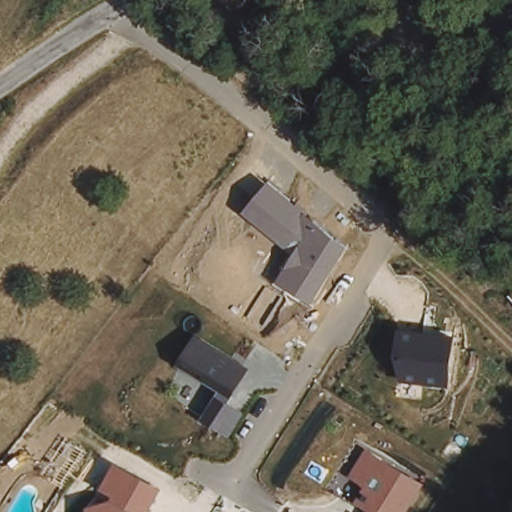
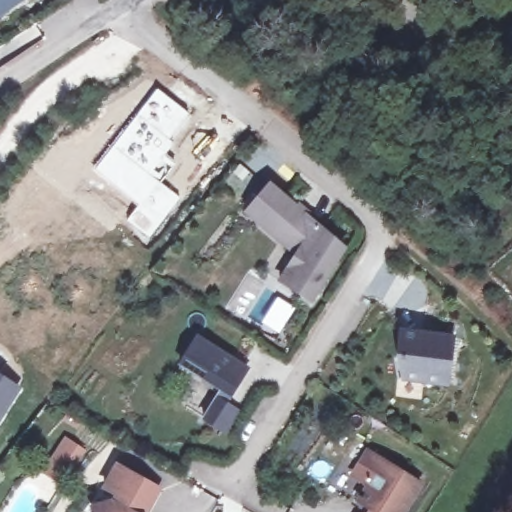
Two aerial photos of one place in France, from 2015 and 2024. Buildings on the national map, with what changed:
new [(26,0),(0,19),(0,0),(26,0)]
new [(157,89),(190,114),(177,130),(172,126),(175,122),(172,120),(162,133),(137,114),(157,89)]
new [(137,114),(162,133),(174,141),(165,155),(174,162),(160,180),(180,196),(148,239),(125,220),(137,205),(93,169),(137,114)]
unchanged [(270,181),(348,247),(312,306),(274,282),(291,255),(244,212),(270,181)]
unchanged [(458,335),(452,388),(397,384),(402,330),(458,335)]
unchanged [(199,335),(253,370),(230,401),(177,367),(199,335)]
new [(22,387),(0,422),(0,373),(22,387)]
unchanged [(244,413),(229,437),(202,420),(218,393),(230,401),(244,413)]
unchanged [(424,483),(407,512),(369,512),(371,508),(357,500),(365,486),(350,476),(366,450),(424,483)]
unchanged [(117,467),(161,491),(147,512),(92,512),(94,508),(112,505),(117,496),(103,489),(117,467)]

